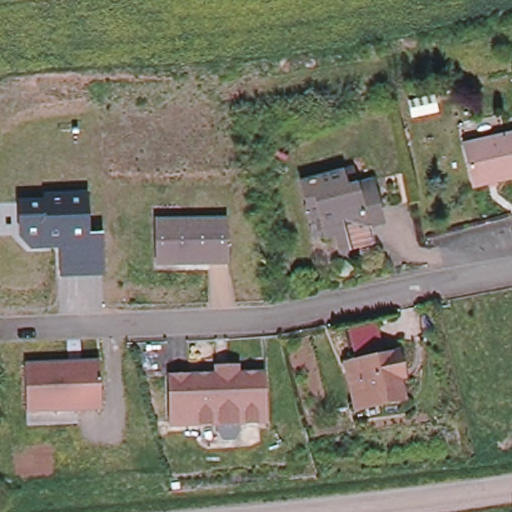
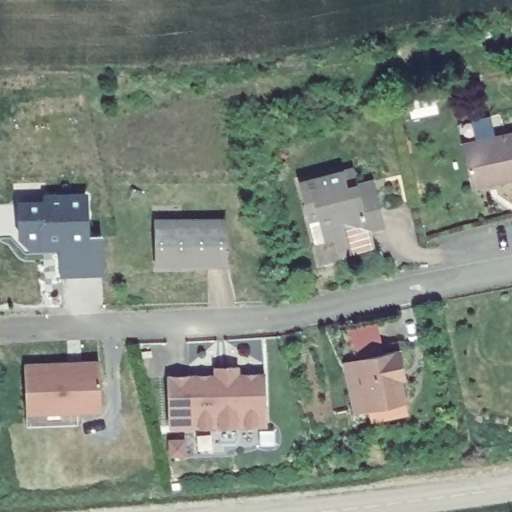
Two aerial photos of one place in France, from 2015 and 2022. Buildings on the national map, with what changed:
unchanged [(512,134),(512,177),(472,186),(462,144),(512,134)]
unchanged [(298,185),(339,175),(350,172),(354,189),(369,185),(372,196),(379,227),(363,230),(367,250),(335,256),(331,239),(322,240),(312,243),(307,221),(298,185)]
unchanged [(15,200),(45,198),(45,195),(87,194),(90,234),(90,233),(102,232),(103,246),(103,276),(60,276),(59,248),(30,250),(17,237),(15,200)]
unchanged [(155,266),(153,220),(227,218),(228,265),(155,266)]
unchanged [(357,357),(352,331),(352,330),(352,329),(353,329),(353,328),(353,327),(354,327),(354,326),(355,326),(356,326),(379,323),(385,352),(401,350),(406,369),(407,376),(402,378),(407,399),(368,406),(357,408),(347,360),(357,357)]
unchanged [(76,411),(77,421),(27,423),(27,413),(23,363),(98,360),(101,410),(76,411)]
unchanged [(212,370),(212,363),(241,362),(241,370),(265,369),(266,408),(267,424),(168,427),(168,410),(166,371),(212,370)]

